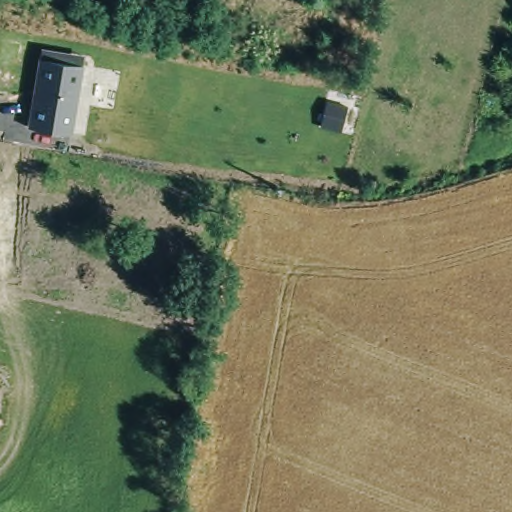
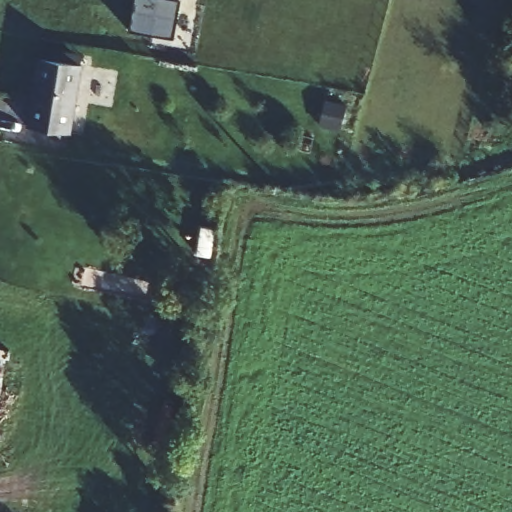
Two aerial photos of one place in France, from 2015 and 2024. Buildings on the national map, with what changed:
new [(174,37),(131,29),(136,0),(180,0),(174,37)]
unchanged [(76,74),(66,144),(22,137),(32,67),(76,74)]
new [(322,108),(342,113),(336,138),(316,133),(322,108)]

